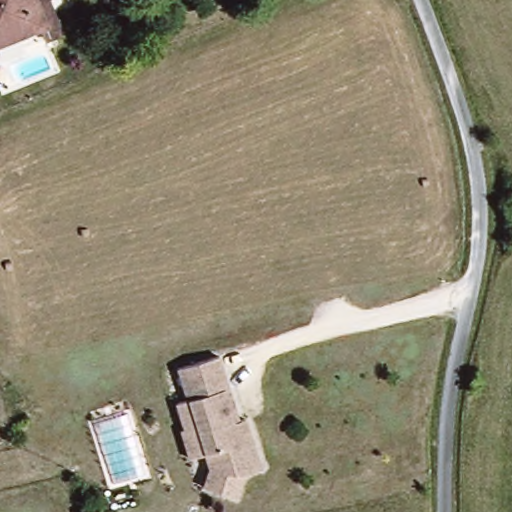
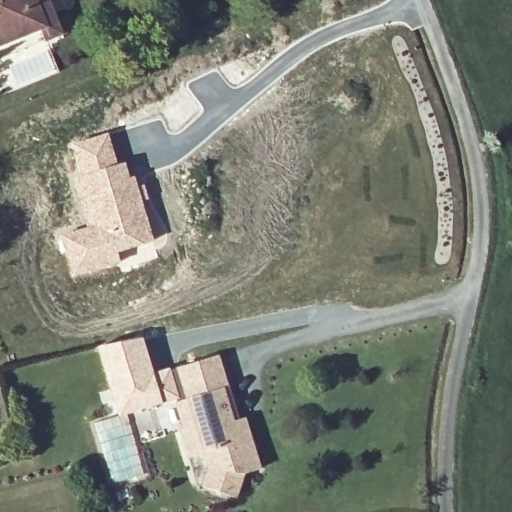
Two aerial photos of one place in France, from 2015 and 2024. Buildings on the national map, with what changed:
unchanged [(0,59),(0,0),(33,0),(49,38),(0,59)]
new [(84,226),(66,172),(73,170),(66,145),(108,131),(118,163),(125,161),(130,176),(135,175),(155,240),(117,253),(120,262),(73,277),(59,234),(84,226)]
unchanged [(180,427),(183,425),(176,400),(185,397),(176,365),(217,353),(227,386),(222,388),(229,409),(232,419),(242,416),(258,467),(242,472),(233,496),(201,485),(208,467),(203,450),(188,455),(180,427)]

